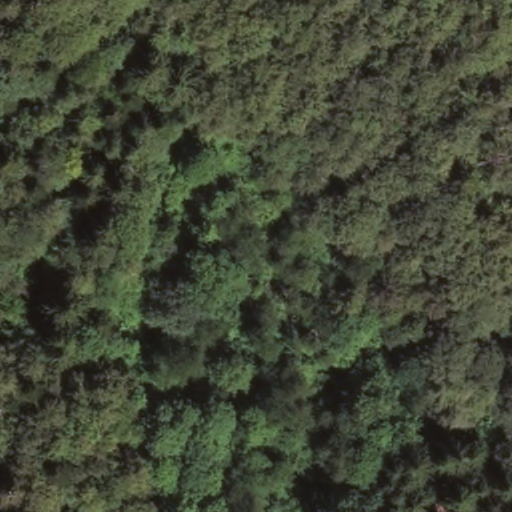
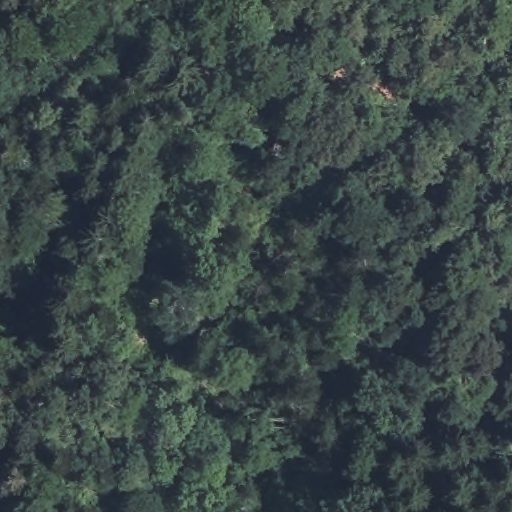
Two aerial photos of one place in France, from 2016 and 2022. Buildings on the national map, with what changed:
[]

